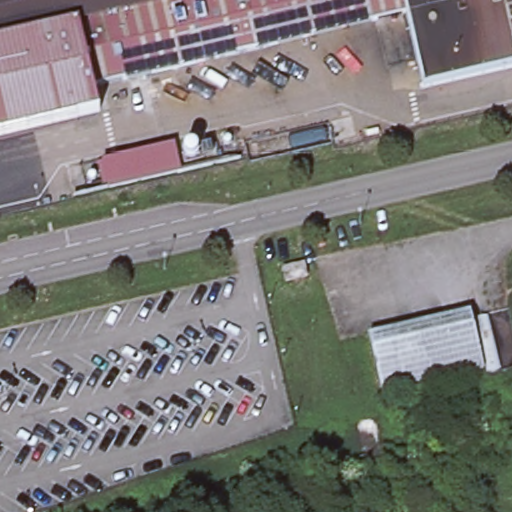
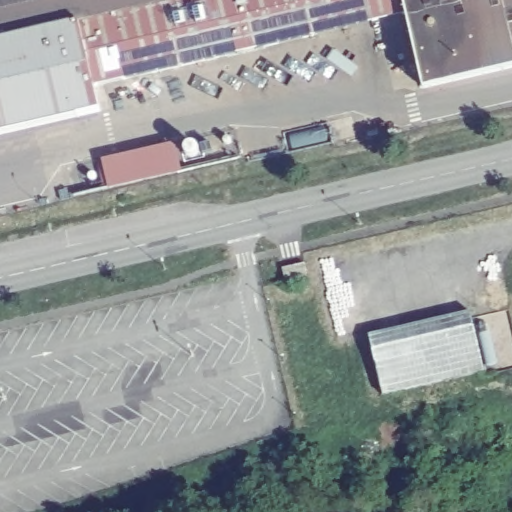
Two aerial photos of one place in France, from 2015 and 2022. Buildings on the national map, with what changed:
unchanged [(404,12),(92,84),(98,110),(0,132),(0,0),(455,0),(404,12)]
unchanged [(512,58),(512,64),(421,86),(404,12),(455,0),(499,0),(512,58)]
unchanged [(512,58),(499,0),(512,0),(512,58)]
unchanged [(168,142),(175,170),(107,186),(100,157),(168,142)]
unchanged [(304,261),(307,275),(285,281),(282,267),(304,261)]
unchanged [(468,319),(483,380),(382,404),(368,343),(468,319)]

